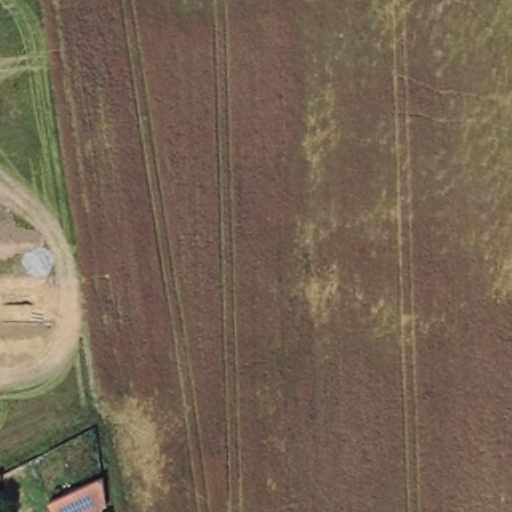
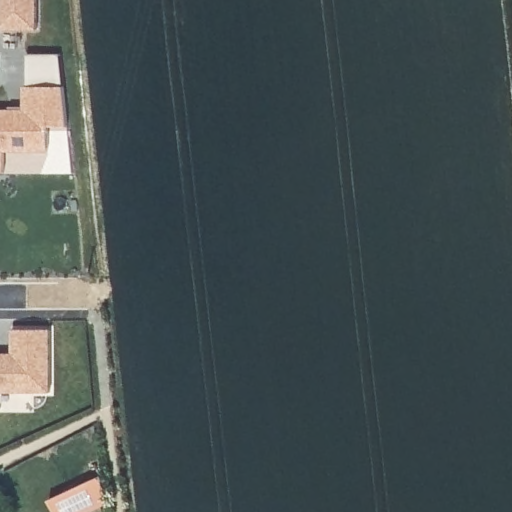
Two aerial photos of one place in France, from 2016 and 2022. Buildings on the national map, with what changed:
new [(0,29),(0,0),(35,0),(35,28),(0,29)]
new [(47,125),(48,151),(4,151),(4,171),(0,171),(0,109),(22,109),(22,86),(27,87),(27,55),(58,56),(66,126),(47,125)]
new [(0,391),(0,352),(11,352),(11,329),(49,329),(49,391),(0,391)]
unchanged [(107,507),(96,512),(55,512),(50,501),(104,476),(107,507)]

